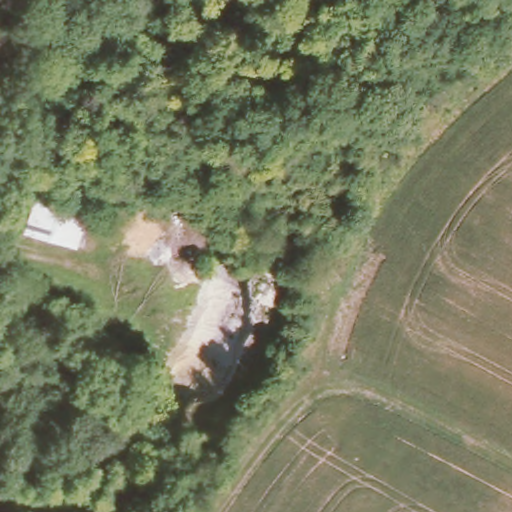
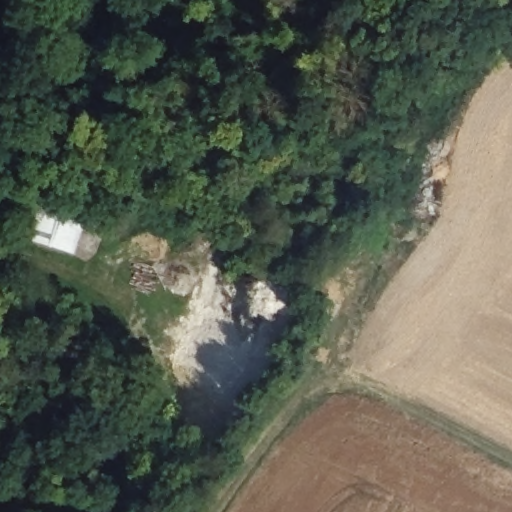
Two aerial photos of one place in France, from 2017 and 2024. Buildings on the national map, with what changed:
unchanged [(80,220),(72,258),(22,243),(29,205),(80,220)]

